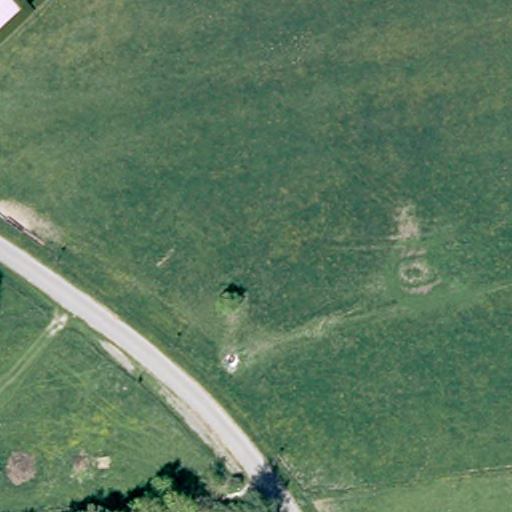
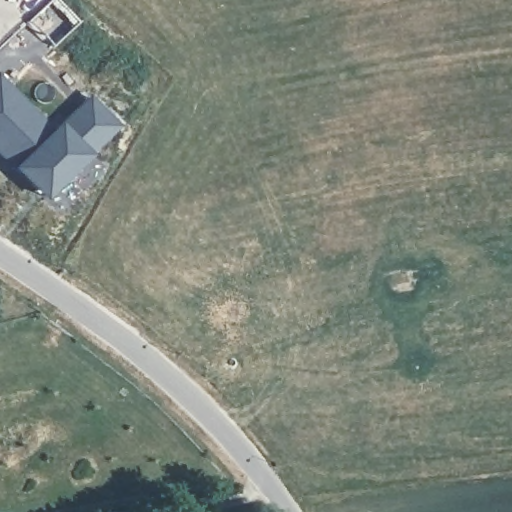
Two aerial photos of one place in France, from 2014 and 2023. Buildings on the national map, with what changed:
new [(55,127),(60,132),(75,117),(98,141),(50,188),(45,182),(35,193),(0,157),(0,82),(50,133),(55,127)]

